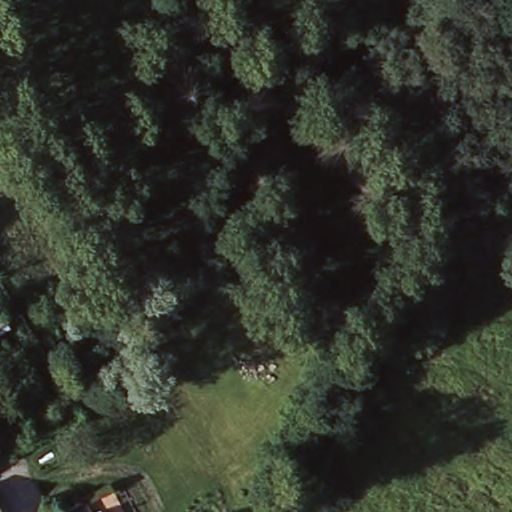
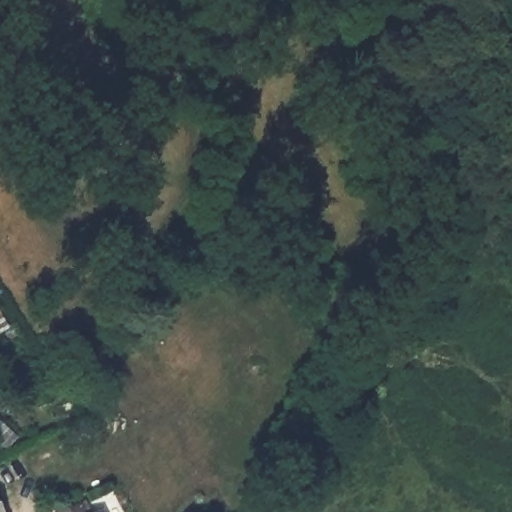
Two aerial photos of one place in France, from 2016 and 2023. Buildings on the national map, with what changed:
unchanged [(78,512),(59,512),(75,504),(78,512)]
unchanged [(92,512),(89,512),(92,511),(92,512)]

